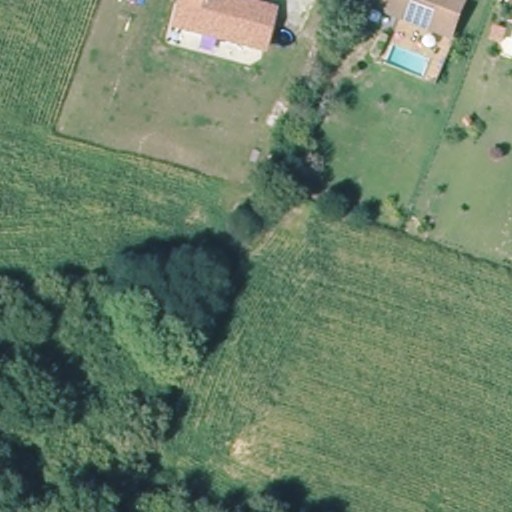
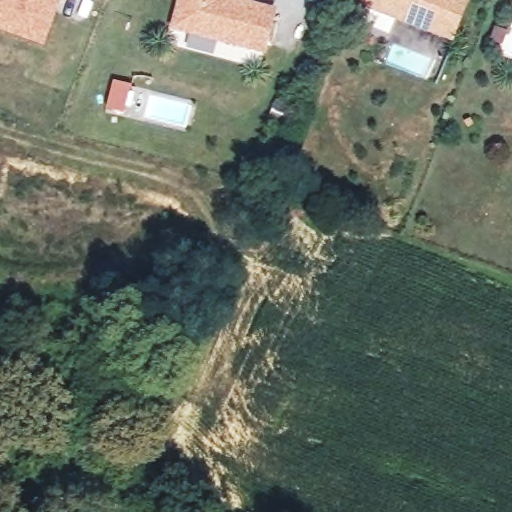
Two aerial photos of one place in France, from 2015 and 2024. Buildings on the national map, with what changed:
new [(59,0),(43,46),(0,30),(0,0),(59,0)]
unchanged [(266,49),(176,30),(182,0),(235,0),(275,8),(266,49)]
unchanged [(377,6),(378,0),(476,0),(467,35),(377,6)]
unchanged [(512,46),(503,44),(506,31),(512,33),(512,46)]
new [(115,79),(130,81),(124,110),(109,107),(115,79)]

